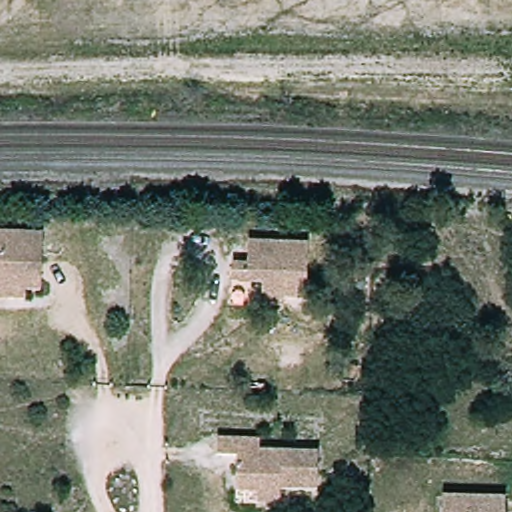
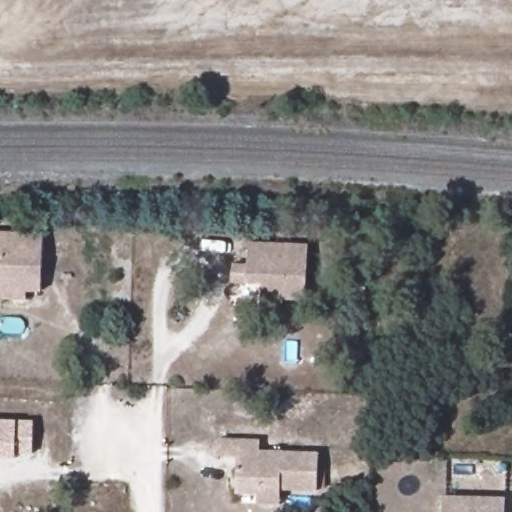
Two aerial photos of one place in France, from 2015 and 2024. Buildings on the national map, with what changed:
unchanged [(30,292),(29,301),(0,300),(0,231),(46,233),(45,293),(30,292)]
unchanged [(310,246),(308,300),(282,299),(281,307),(263,306),(263,283),(233,282),(233,263),(248,263),(249,244),(310,246)]
new [(36,417),(36,455),(0,454),(0,417),(36,417)]
unchanged [(240,465),(251,465),(252,456),(221,456),(222,440),(262,441),(261,452),(321,453),(320,491),(261,489),(261,494),(240,492),(240,465)]
unchanged [(507,512),(445,512),(445,497),(507,499),(507,512)]

